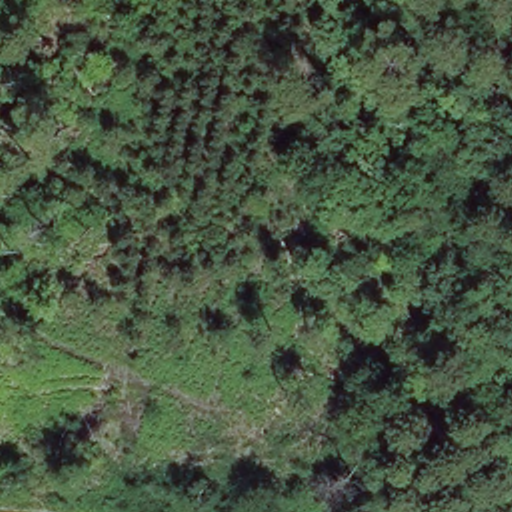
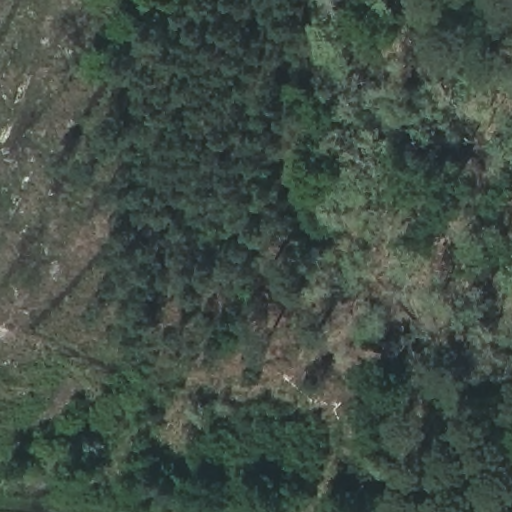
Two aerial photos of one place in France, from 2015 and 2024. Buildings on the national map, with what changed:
[]

